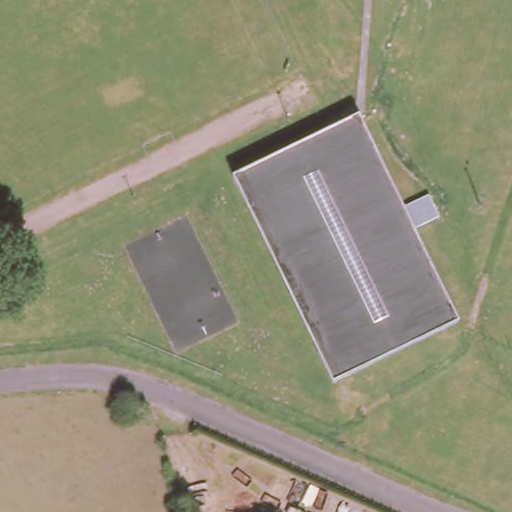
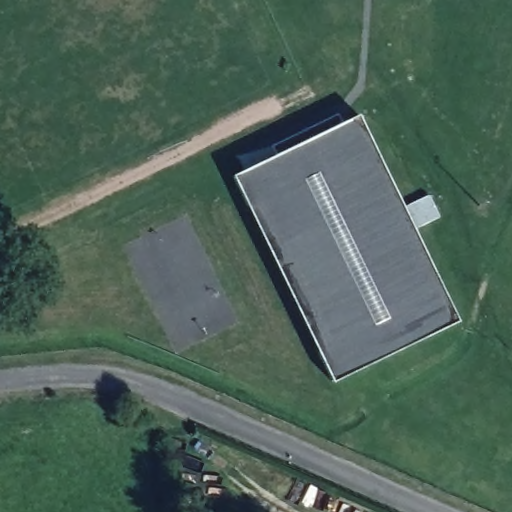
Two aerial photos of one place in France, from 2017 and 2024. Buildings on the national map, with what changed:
unchanged [(402,206),(429,192),(440,215),(412,228),(458,320),(332,382),(230,177),(356,114),(402,206)]

